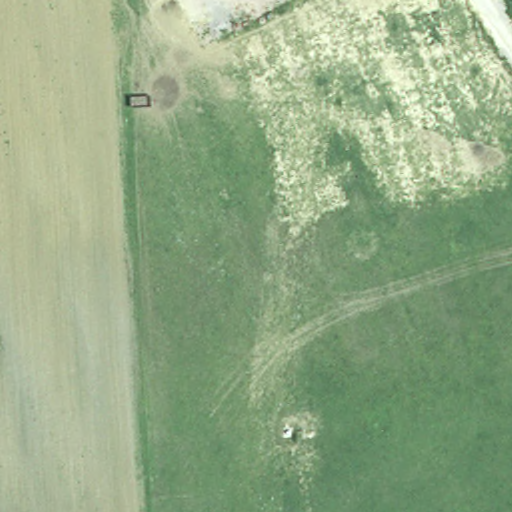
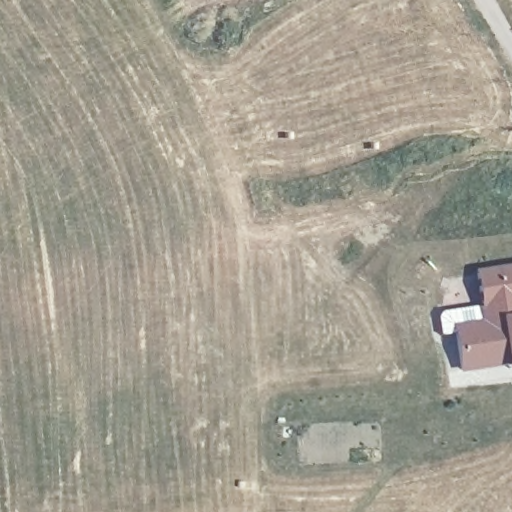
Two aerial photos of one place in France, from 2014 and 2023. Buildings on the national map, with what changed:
new [(505,375),(504,368),(459,374),(452,325),(481,320),(475,273),(512,267),(512,373),(505,375)]

